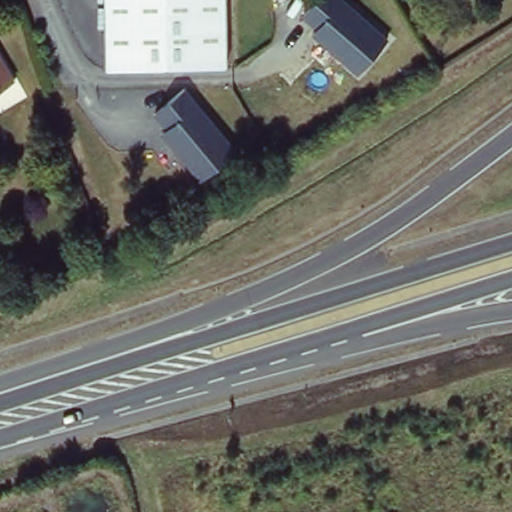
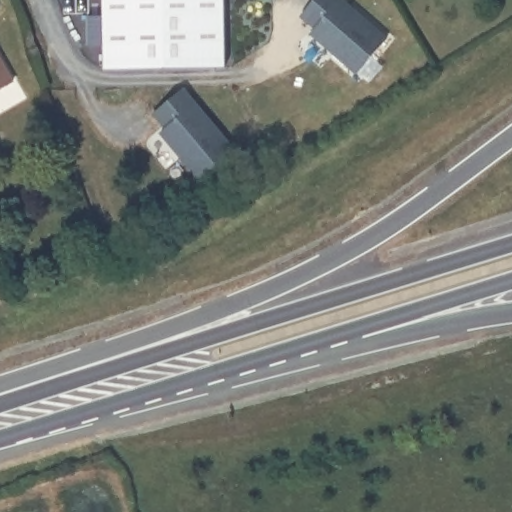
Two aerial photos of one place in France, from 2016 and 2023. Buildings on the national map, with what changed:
unchanged [(106,67),(105,0),(226,0),(228,66),(106,67)]
unchanged [(317,29),(300,14),(314,0),(350,0),(390,40),(358,77),(314,35),(317,29)]
unchanged [(0,90),(0,61),(13,83),(0,90)]
unchanged [(169,125),(158,107),(187,85),(240,150),(208,176),(165,128),(169,125)]

